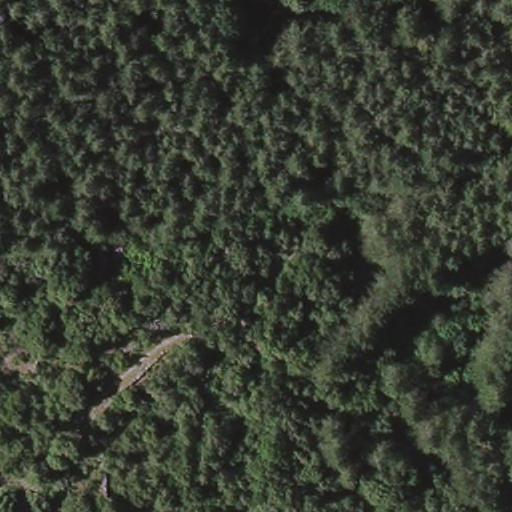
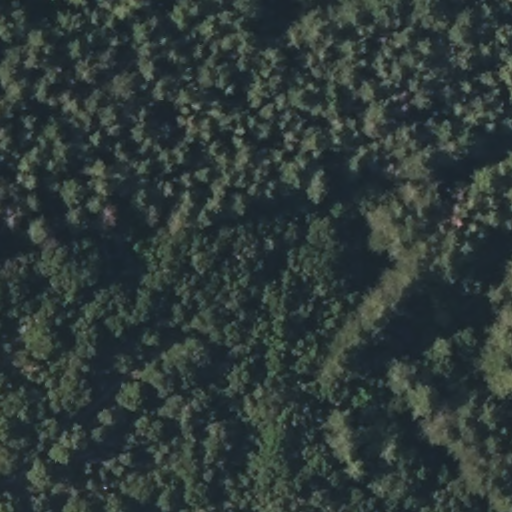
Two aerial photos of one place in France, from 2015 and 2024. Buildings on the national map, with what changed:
unchanged [(125,259),(107,258),(105,235),(124,235),(125,259)]

